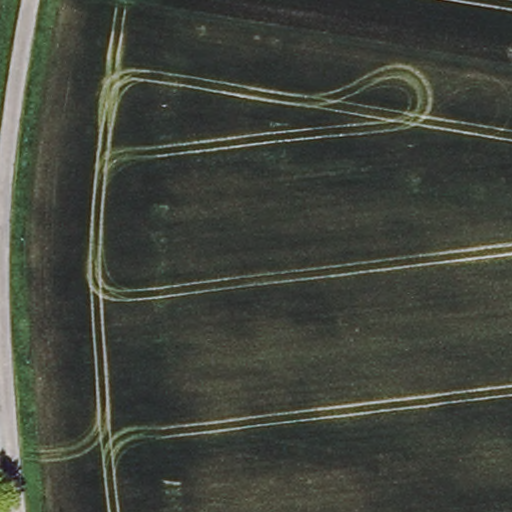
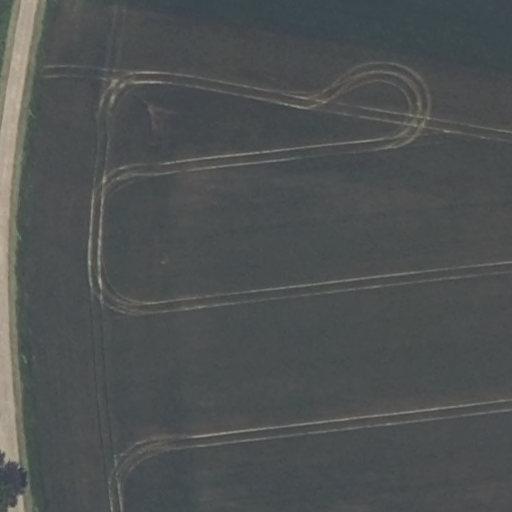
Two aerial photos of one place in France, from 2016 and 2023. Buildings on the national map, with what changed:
[]

